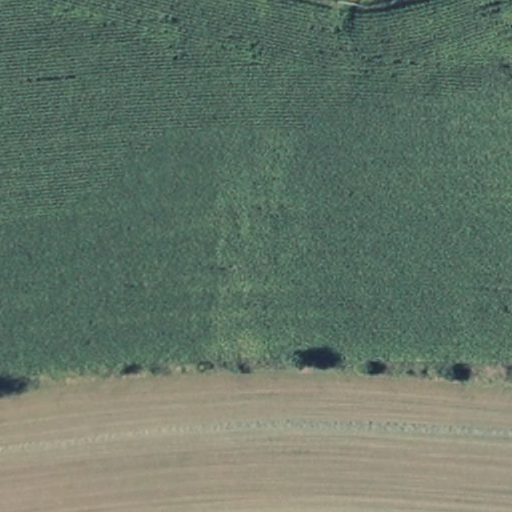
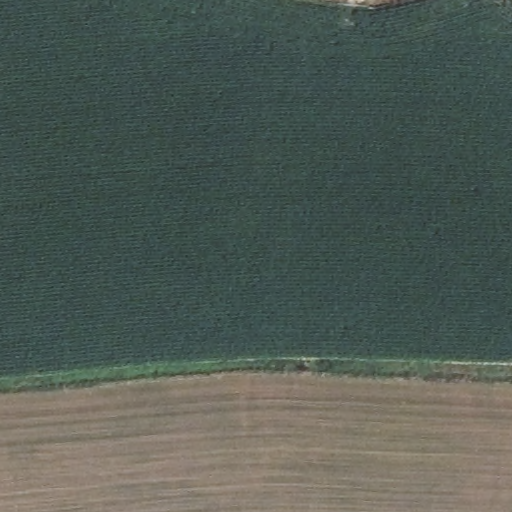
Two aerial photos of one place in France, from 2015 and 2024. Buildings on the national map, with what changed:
[]

